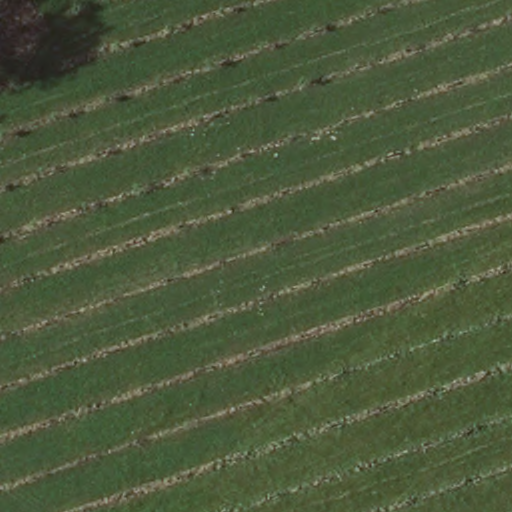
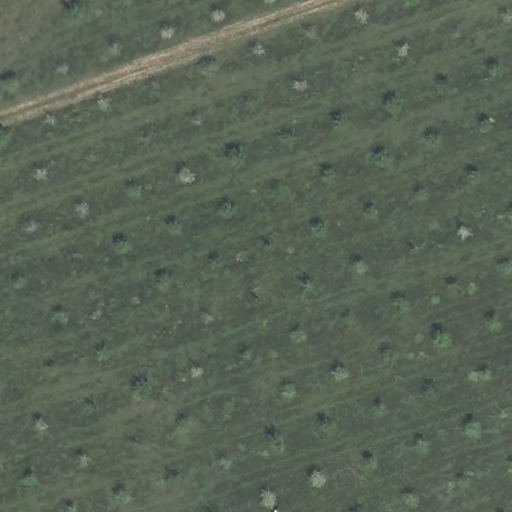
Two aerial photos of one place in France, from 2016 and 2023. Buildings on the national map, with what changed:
[]

